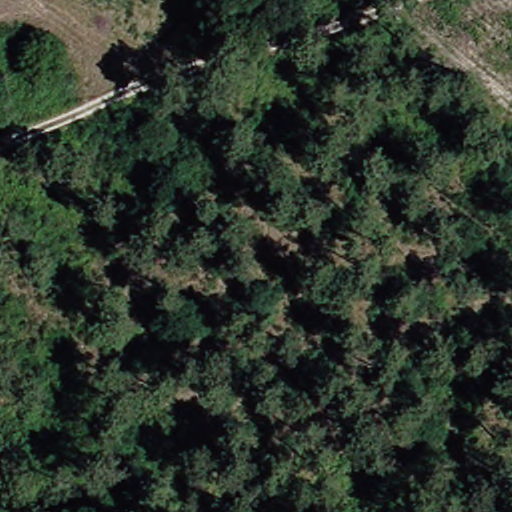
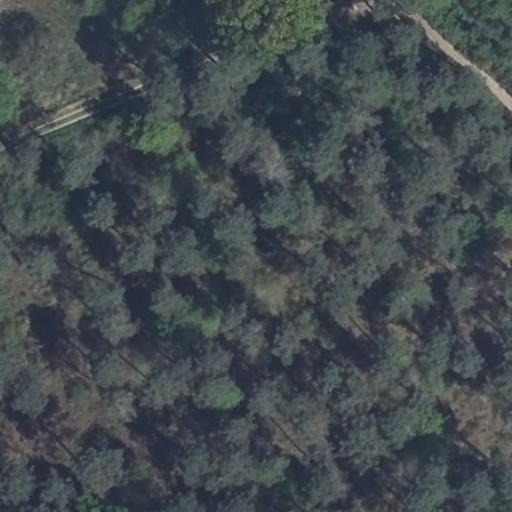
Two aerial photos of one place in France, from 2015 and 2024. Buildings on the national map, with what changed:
[]

